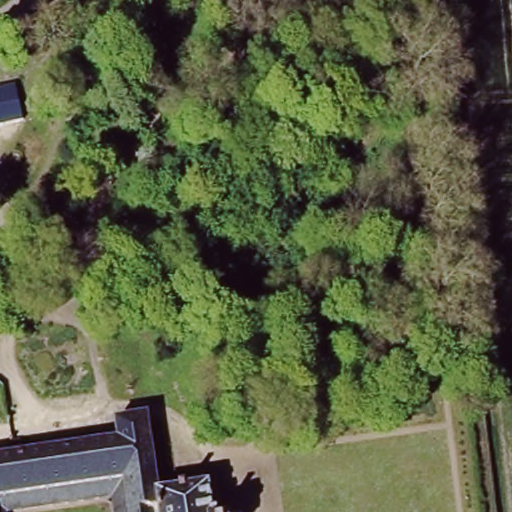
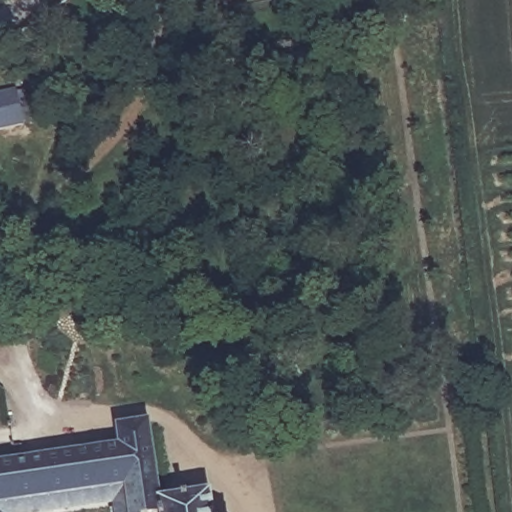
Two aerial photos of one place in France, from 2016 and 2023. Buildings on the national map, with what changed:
unchanged [(12,465),(118,450),(115,431),(147,426),(159,503),(207,497),(210,512),(126,512),(123,491),(0,509),(0,467),(12,465)]

